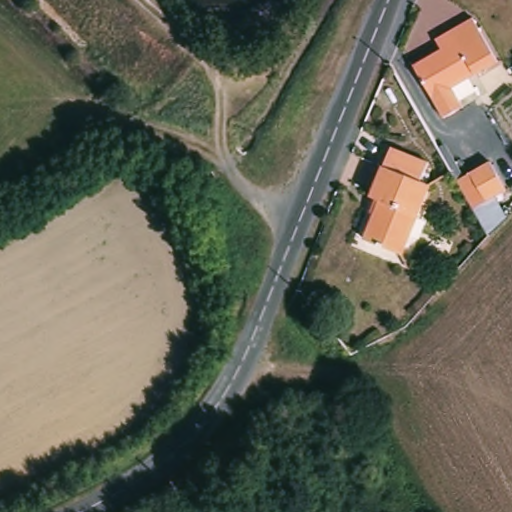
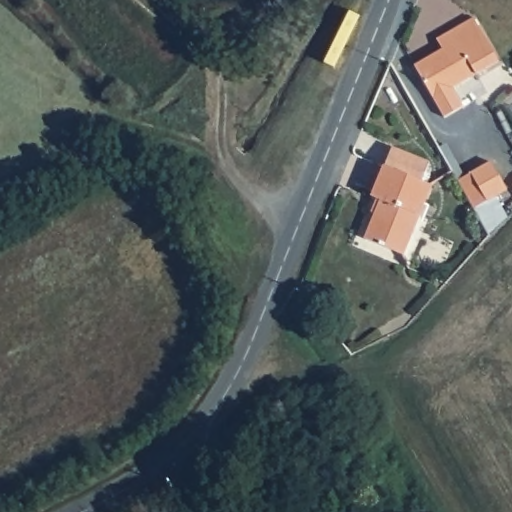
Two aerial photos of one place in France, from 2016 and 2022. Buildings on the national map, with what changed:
unchanged [(412,66),(440,50),(434,40),(471,19),(496,62),(432,100),(412,66)]
unchanged [(386,168),(394,150),(431,165),(423,183),(432,187),(404,258),(367,242),(383,203),(373,200),(386,168)]
unchanged [(485,203),(468,174),(488,163),(505,191),(485,203)]

